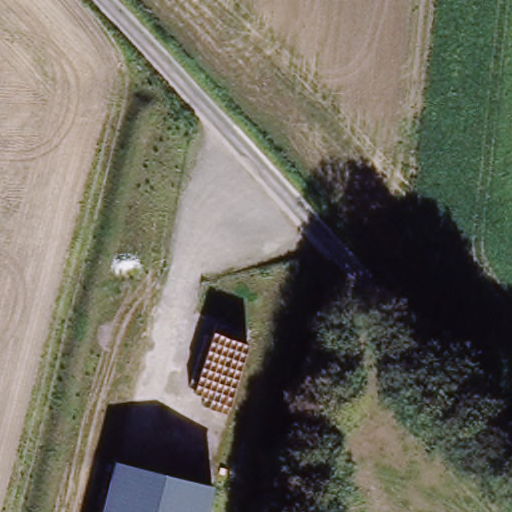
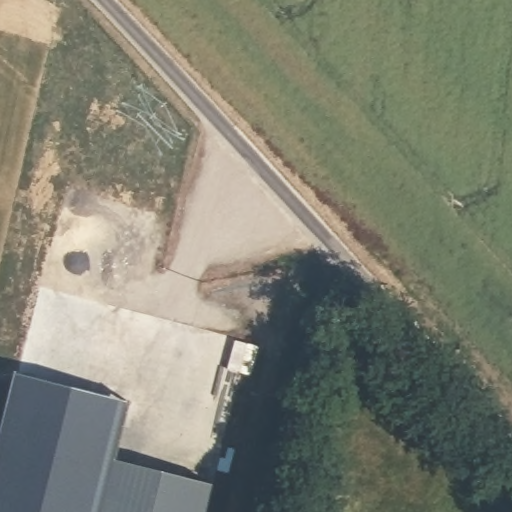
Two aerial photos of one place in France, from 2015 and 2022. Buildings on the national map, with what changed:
new [(15,361),(130,393),(114,459),(100,512),(0,512),(0,418),(15,361)]
unchanged [(114,459),(214,486),(207,512),(100,512),(114,459)]

